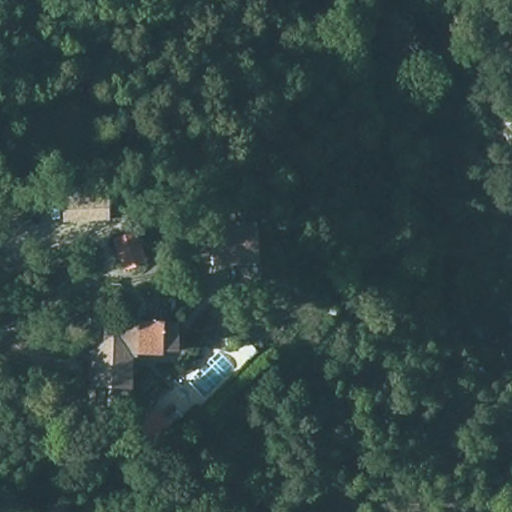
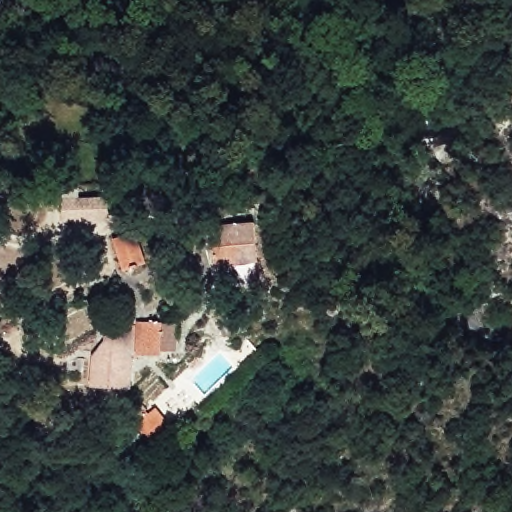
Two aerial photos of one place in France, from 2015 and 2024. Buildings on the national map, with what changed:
unchanged [(119,221),(65,225),(64,199),(111,195),(119,221)]
unchanged [(264,267),(240,268),(240,280),(217,280),(210,245),(217,243),(217,222),(257,220),(264,267)]
unchanged [(125,272),(114,235),(142,227),(152,261),(125,272)]
unchanged [(94,392),(92,355),(105,341),(105,321),(180,320),(182,350),(137,357),(137,388),(94,392)]

